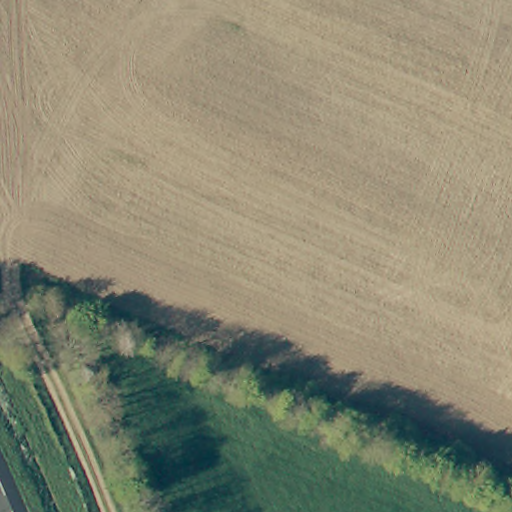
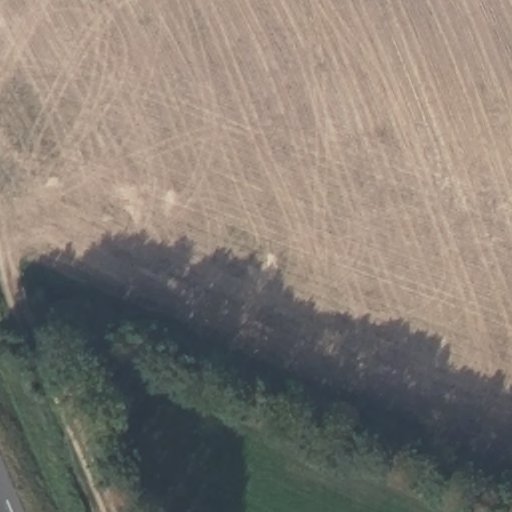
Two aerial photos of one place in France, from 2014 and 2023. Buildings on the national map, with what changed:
[]

